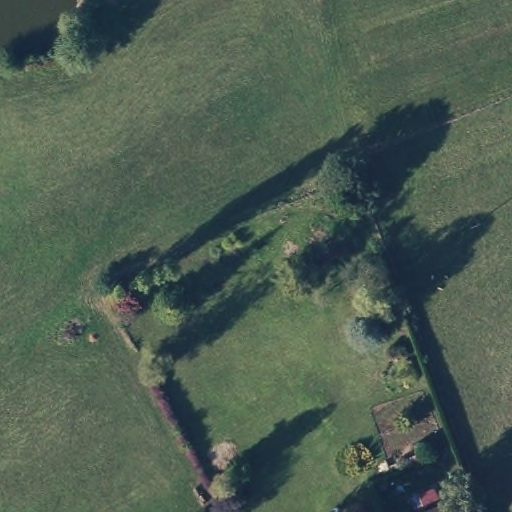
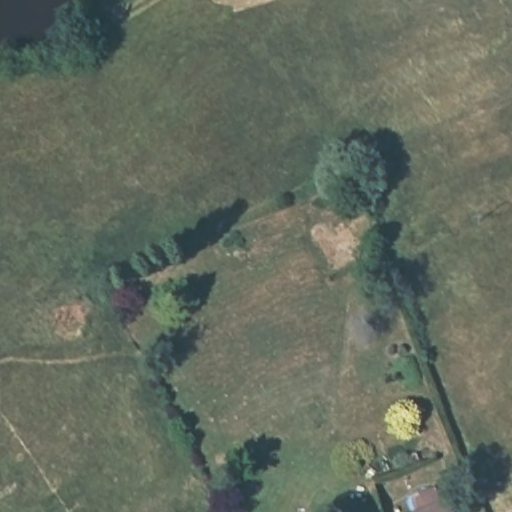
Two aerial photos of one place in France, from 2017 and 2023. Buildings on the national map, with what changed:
unchanged [(451,512),(403,512),(445,495),(451,512)]

